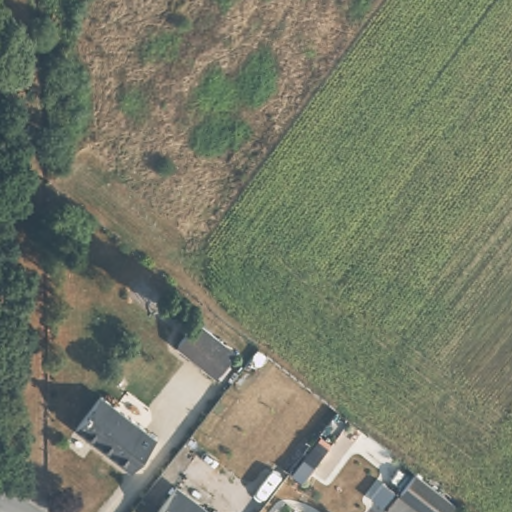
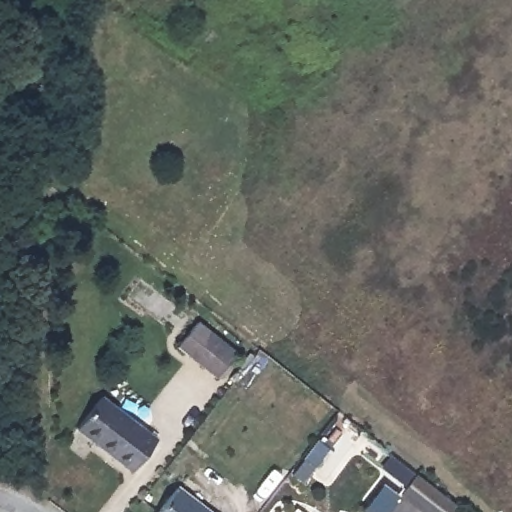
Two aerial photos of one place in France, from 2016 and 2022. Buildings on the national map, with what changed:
unchanged [(236,349),(216,374),(191,354),(176,343),(197,317),(236,349)]
unchanged [(72,423),(97,393),(153,436),(129,466),(72,423)]
unchanged [(439,512),(432,512),(400,487),(415,468),(451,497),(439,512)]
unchanged [(210,512),(153,512),(175,484),(210,512)]

